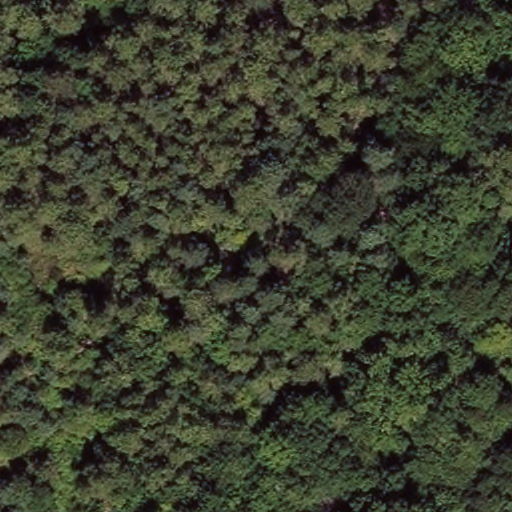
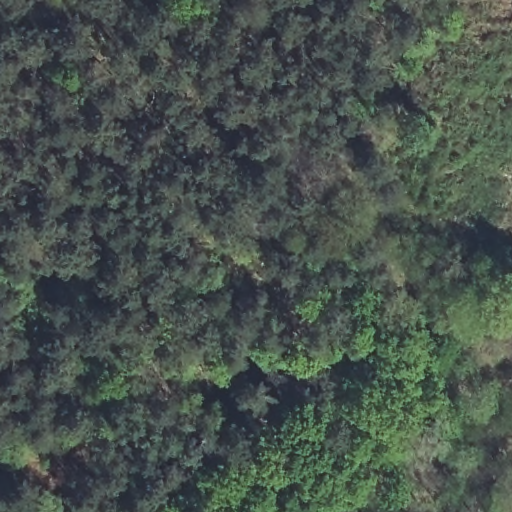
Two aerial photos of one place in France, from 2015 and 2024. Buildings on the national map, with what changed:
[]

